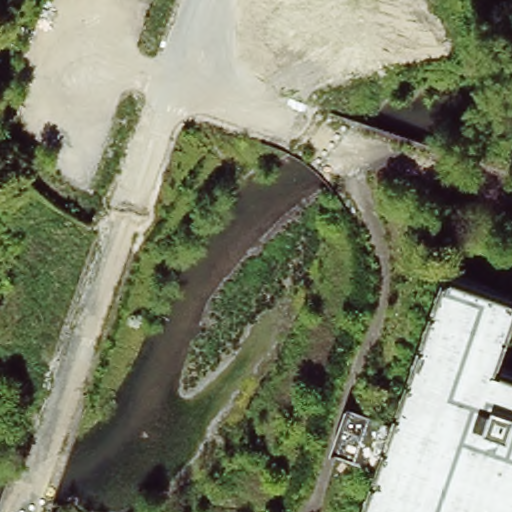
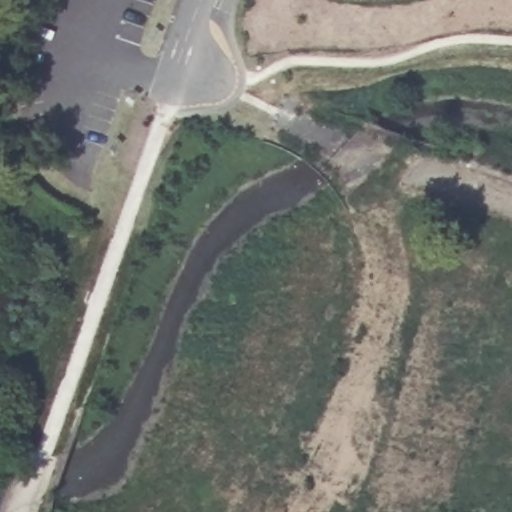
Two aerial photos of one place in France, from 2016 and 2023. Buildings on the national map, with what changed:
demolished [(448,270),(512,293),(512,315),(494,363),(512,369),(512,512),(361,512),(448,270)]
demolished [(349,406),(380,419),(366,461),(336,451),(349,406)]

